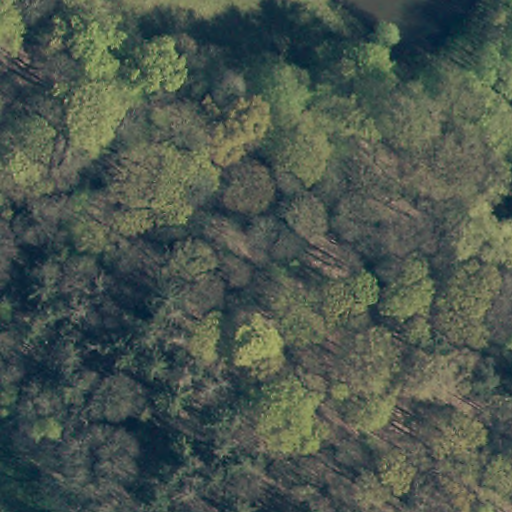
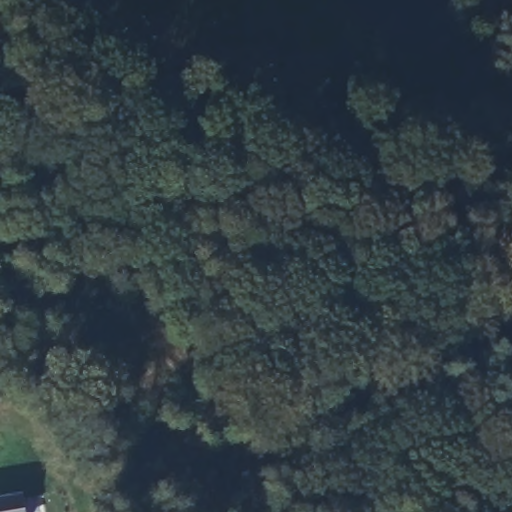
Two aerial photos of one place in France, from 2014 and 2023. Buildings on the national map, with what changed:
new [(25,493),(28,512),(0,512),(0,498),(25,493)]

